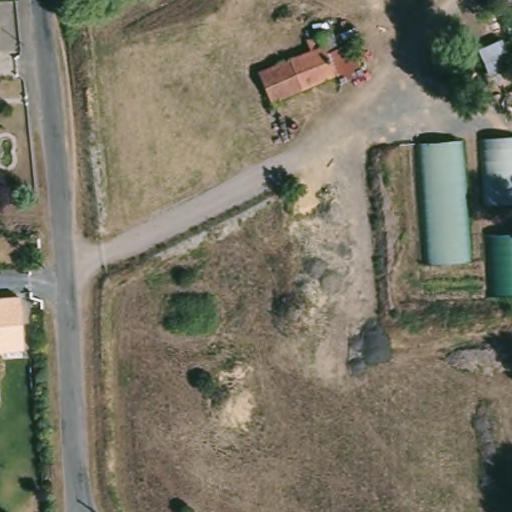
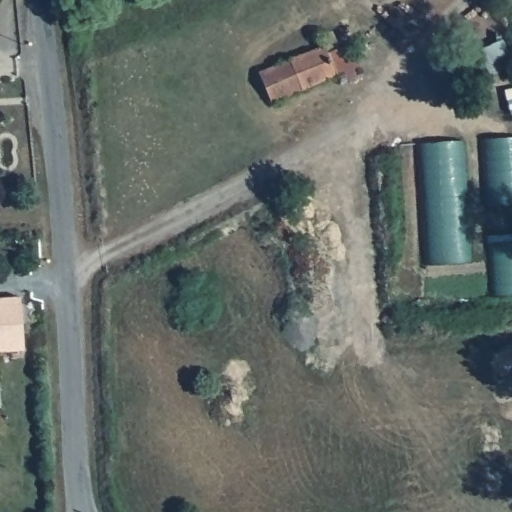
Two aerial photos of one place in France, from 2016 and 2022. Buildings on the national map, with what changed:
unchanged [(314,56),(309,43),(334,32),(357,83),(338,90),(334,81),(270,107),(258,79),(314,56)]
unchanged [(421,148),(458,145),(467,266),(429,270),(421,148)]
unchanged [(18,302),(23,353),(0,355),(0,304),(18,302)]

